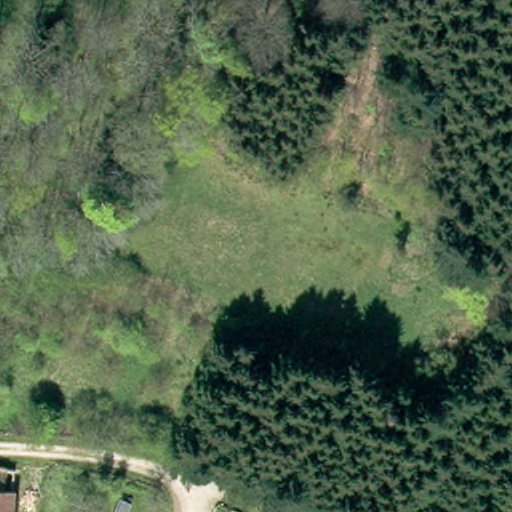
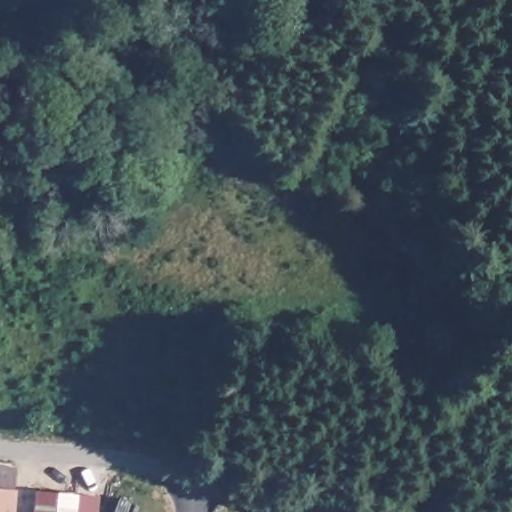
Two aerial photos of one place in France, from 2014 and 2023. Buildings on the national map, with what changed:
unchanged [(10,464),(6,512),(0,512),(0,464),(10,464)]
new [(79,494),(77,512),(32,512),(35,489),(79,494)]

